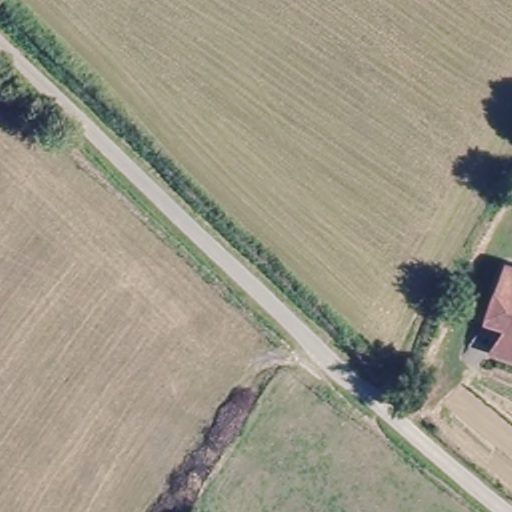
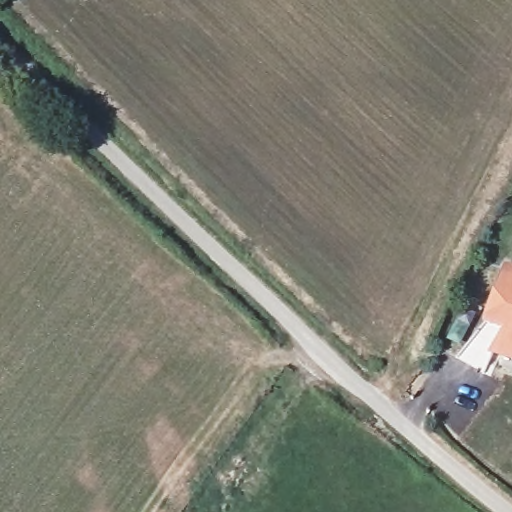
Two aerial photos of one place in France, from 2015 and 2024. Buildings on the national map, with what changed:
unchanged [(512,268),(512,355),(493,350),(498,323),(487,320),(504,266),(512,268)]

